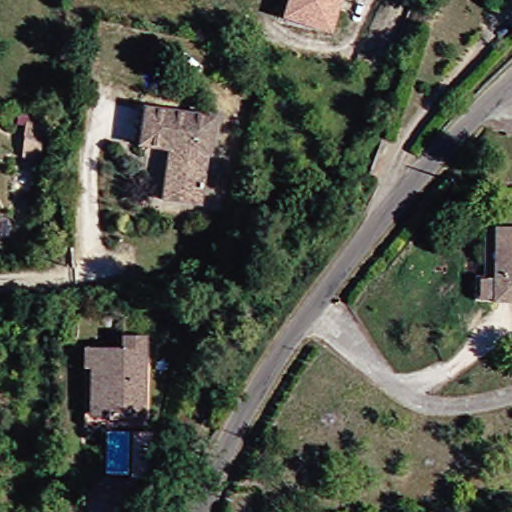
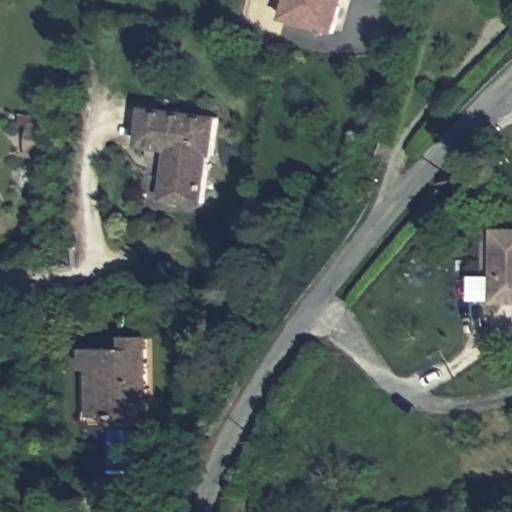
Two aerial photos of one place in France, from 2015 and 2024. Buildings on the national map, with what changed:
unchanged [(285,21),(291,0),(344,0),(344,2),(341,9),(333,36),(285,21)]
unchanged [(214,146),(213,149),(209,149),(209,158),(204,198),(169,193),(171,176),(173,165),(174,160),(176,145),(174,142),(164,141),(146,139),(147,133),(148,122),(149,117),(151,106),(168,108),(180,110),(197,112),(217,115),(216,123),(214,140),(214,146)]
unchanged [(21,155),(23,146),(26,125),(41,127),(39,148),(38,157),(21,155)]
unchanged [(481,298),(482,274),(502,275),(503,229),(512,229),(512,301),(501,300),(501,299),(481,298)]
unchanged [(95,365),(89,365),(89,345),(96,345),(103,345),(127,346),(127,333),(151,334),(151,346),(151,388),(151,399),(151,411),(152,412),(148,412),(106,411),(105,411),(95,411),(95,365)]

